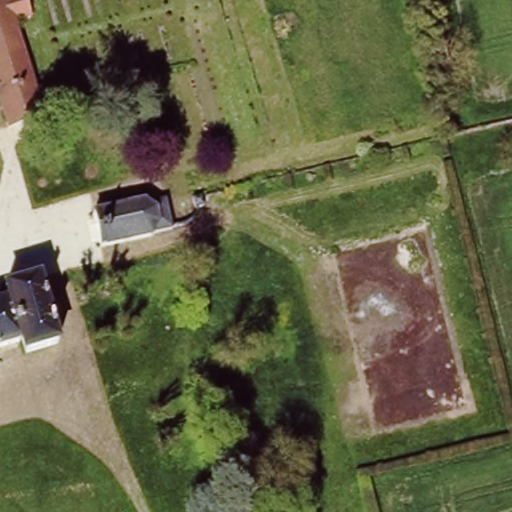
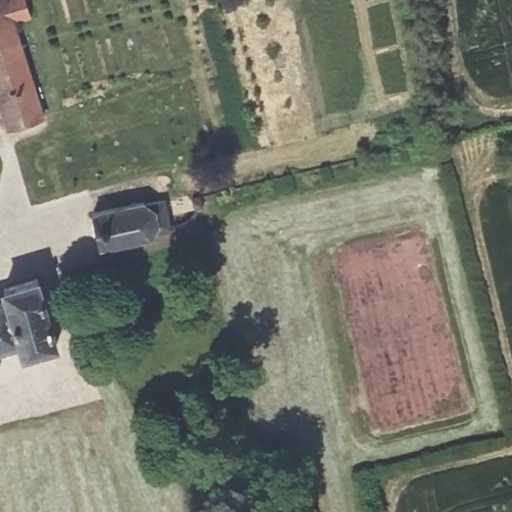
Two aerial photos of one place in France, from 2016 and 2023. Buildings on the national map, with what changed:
unchanged [(34,19),(20,22),(50,120),(12,130),(0,92),(0,0),(28,0),(34,19)]
unchanged [(97,206),(120,200),(121,205),(125,204),(144,200),(147,210),(155,209),(170,205),(170,192),(180,190),(180,204),(177,205),(172,206),(167,219),(163,220),(151,222),(152,225),(152,226),(130,230),(128,230),(129,236),(107,242),(97,206)]
unchanged [(23,335),(0,343),(0,302),(11,298),(6,284),(40,273),(61,337),(27,348),(23,335)]

